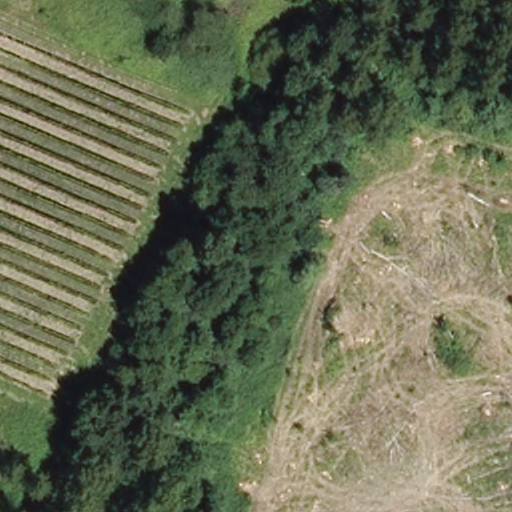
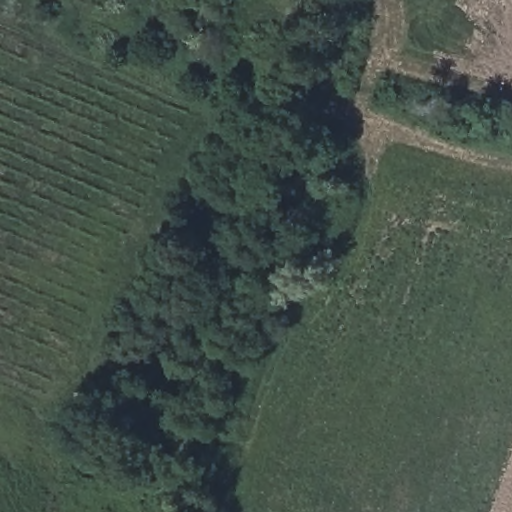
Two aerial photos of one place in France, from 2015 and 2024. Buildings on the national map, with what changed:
[]

